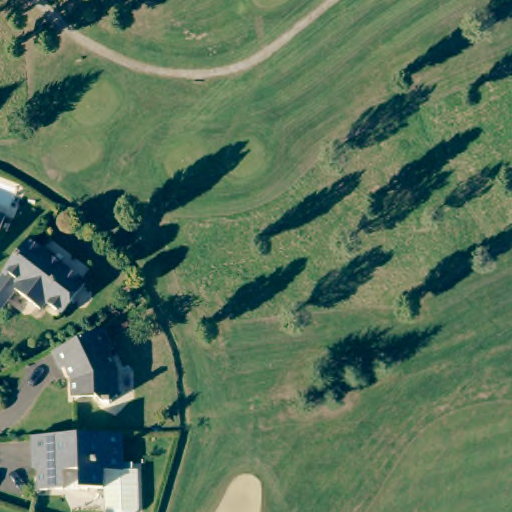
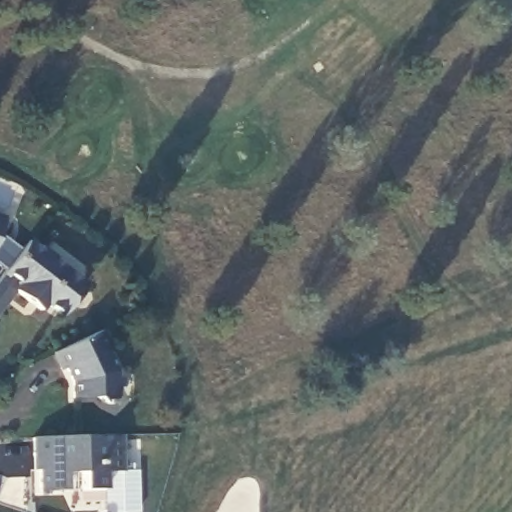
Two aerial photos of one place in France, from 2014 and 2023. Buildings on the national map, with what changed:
unchanged [(4,214),(0,225),(0,213),(4,214)]
unchanged [(27,241),(85,286),(61,316),(45,304),(40,311),(15,292),(10,298),(0,311),(0,277),(27,241)]
unchanged [(112,347),(110,360),(119,373),(118,396),(111,407),(102,406),(97,403),(75,400),(74,378),(71,373),(65,372),(59,355),(106,333),(112,347)]
unchanged [(23,488),(25,456),(19,456),(20,440),(107,437),(106,468),(105,468),(105,473),(89,472),(87,492),(65,490),(47,489),(23,488)]
unchanged [(105,468),(106,468),(117,469),(117,476),(122,476),(120,512),(86,512),(87,492),(89,472),(105,473),(105,468)]

